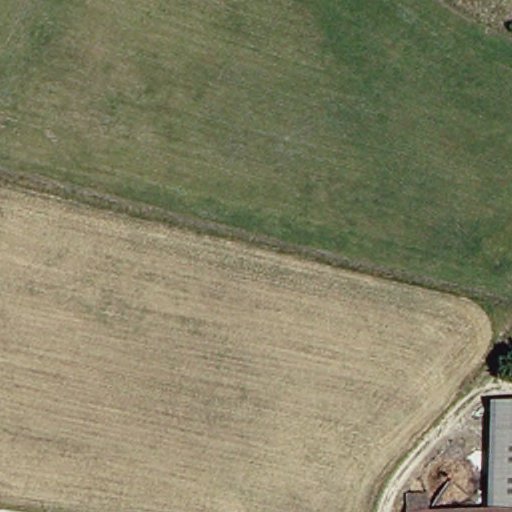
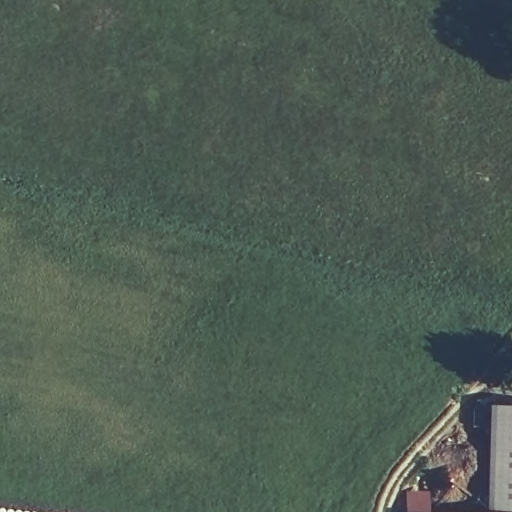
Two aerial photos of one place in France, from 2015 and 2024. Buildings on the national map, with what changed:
unchanged [(488,512),(488,412),(512,411),(512,512),(488,512)]
unchanged [(431,512),(411,512),(411,504),(431,503),(431,512)]

